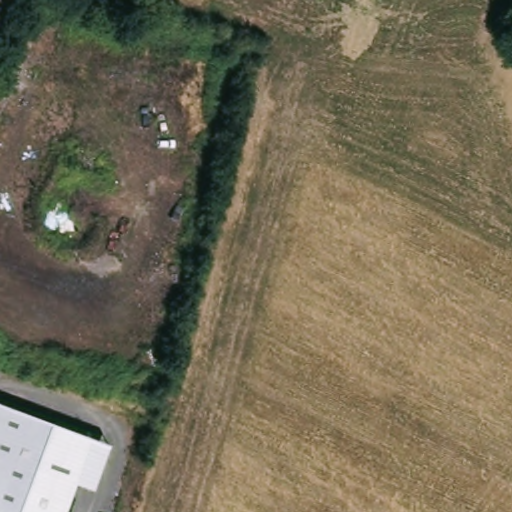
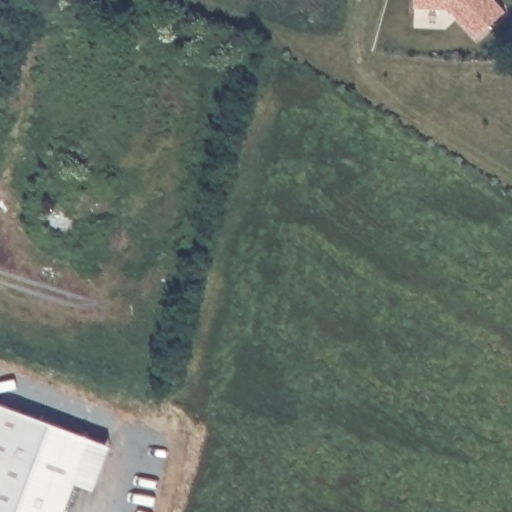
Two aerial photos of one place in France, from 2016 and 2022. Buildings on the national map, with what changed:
new [(414,0),(491,0),(504,14),(475,40),(450,9),(414,7),(414,0)]
unchanged [(96,443),(115,450),(97,495),(79,487),(69,512),(0,512),(0,406),(96,443)]

